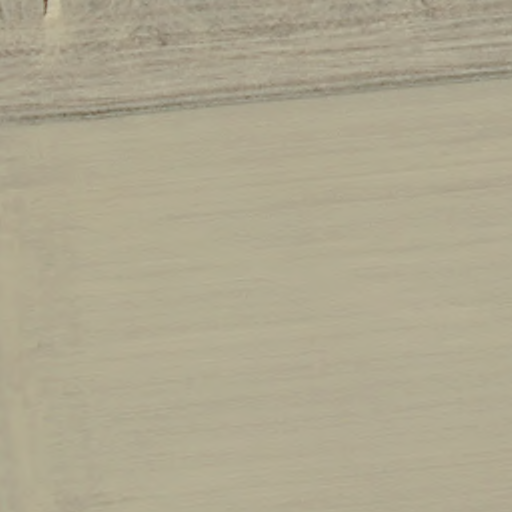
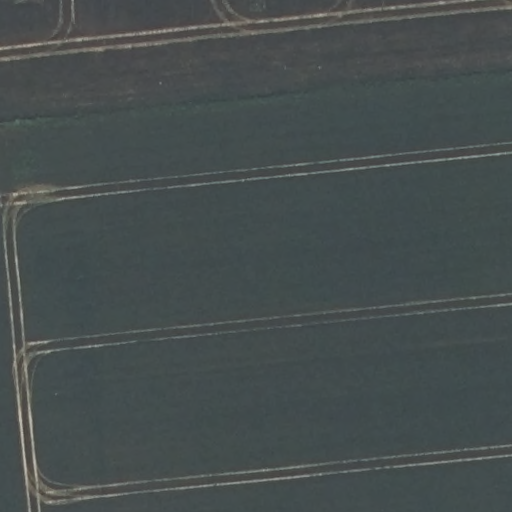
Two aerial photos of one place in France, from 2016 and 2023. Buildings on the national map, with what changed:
[]

